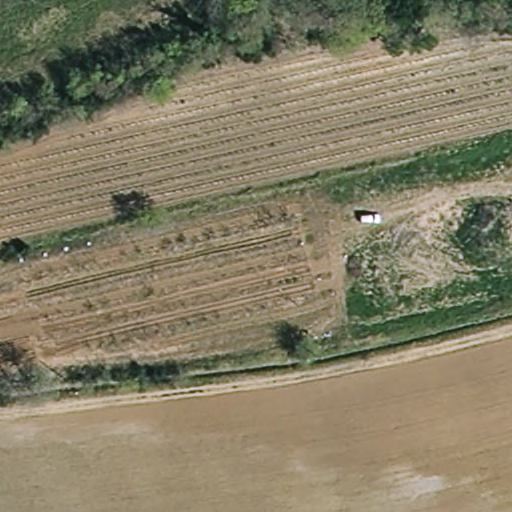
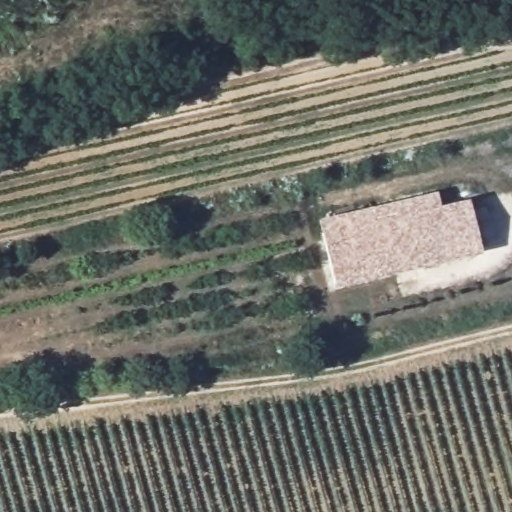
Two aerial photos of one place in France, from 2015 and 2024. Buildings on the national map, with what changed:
new [(363,233),(359,219),(417,201),(421,215),(464,202),(480,251),(336,296),(320,246),(363,233)]

